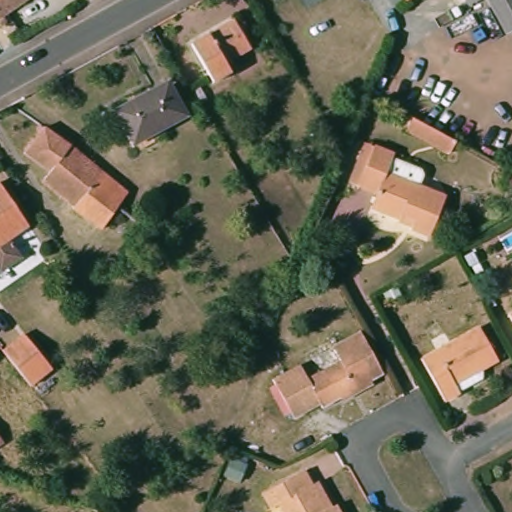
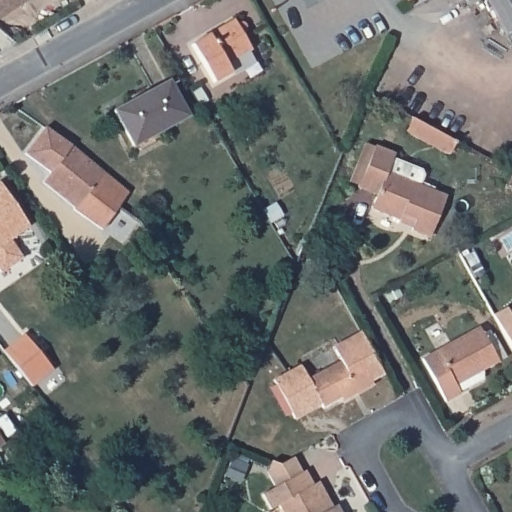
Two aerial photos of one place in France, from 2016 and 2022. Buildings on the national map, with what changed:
unchanged [(0,0),(20,0),(0,13),(0,0)]
unchanged [(488,0),(512,0),(512,26),(505,30),(488,0)]
unchanged [(231,15),(233,19),(238,17),(241,17),(244,19),(245,23),(245,26),(244,29),(241,31),(250,46),(224,61),(229,70),(213,80),(187,41),(231,15)]
unchanged [(170,75),(189,110),(145,135),(135,141),(116,106),(121,103),(170,75)]
unchanged [(436,133),(454,144),(448,155),(445,155),(404,131),(411,118),(436,133)]
unchanged [(23,147),(43,121),(74,144),(122,181),(127,185),(116,200),(109,212),(101,221),(101,222),(73,202),(74,199),(41,175),(48,166),(23,147)]
unchanged [(372,211),(378,196),(359,188),(359,187),(350,183),(366,144),(375,148),(376,147),(393,154),(391,161),(419,172),(421,178),(417,187),(445,199),(429,239),(411,232),(412,230),(399,225),(401,223),(372,211)]
unchanged [(31,227),(11,240),(24,258),(3,272),(0,268),(0,183),(1,183),(31,227)]
unchanged [(512,311),(512,332),(503,316),(512,311)]
unchanged [(458,387),(460,390),(445,398),(421,355),(478,324),(496,357),(482,365),(481,373),(458,387)]
unchanged [(27,328),(56,364),(35,382),(6,346),(27,328)]
unchanged [(338,396),(322,405),(319,401),(295,415),(273,377),(299,364),(307,377),(338,361),(331,348),(360,332),(383,373),(370,381),(372,384),(357,392),(342,401),(338,396)]
unchanged [(0,444),(0,428),(7,439),(0,444)]
unchanged [(346,512),(286,512),(282,503),(273,508),(266,493),(311,468),(319,484),(324,481),(337,505),(341,502),(346,512)]

